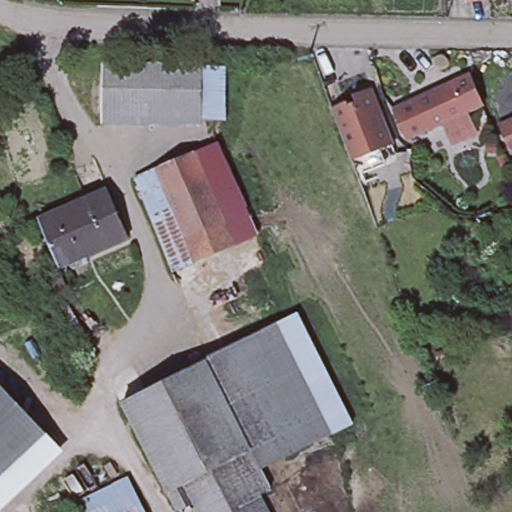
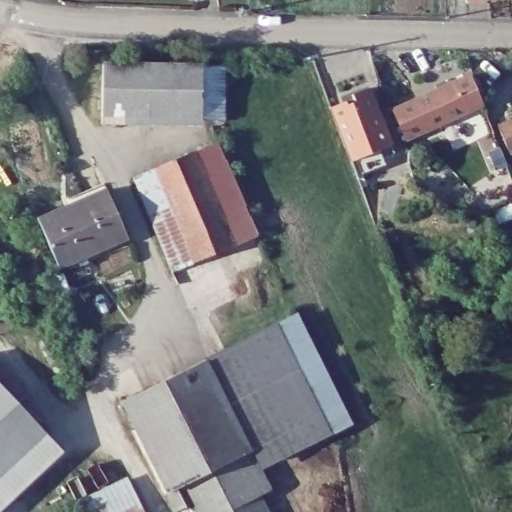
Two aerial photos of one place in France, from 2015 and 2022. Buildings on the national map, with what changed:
unchanged [(462,0),(502,0),(464,7),(462,0)]
unchanged [(117,64),(142,124),(102,124),(103,63),(117,64)]
unchanged [(225,66),(225,119),(205,119),(205,125),(142,124),(117,64),(225,66)]
unchanged [(468,74),(479,104),(463,110),(440,121),(404,138),(391,110),(416,99),(468,74)]
unchanged [(345,103),(347,106),(356,103),(353,94),(367,89),(393,145),(353,163),(331,108),(345,103)]
unchanged [(502,151),(490,125),(512,116),(512,147),(502,151)]
unchanged [(218,139),(262,237),(198,260),(195,262),(174,270),(135,177),(156,168),(160,166),(218,139)]
unchanged [(103,189),(125,237),(56,267),(34,218),(103,189)]
unchanged [(256,469),(202,360),(224,349),(216,332),(222,329),(285,298),(347,423),(275,459),(256,469)]
unchanged [(267,489),(257,494),(265,512),(194,512),(189,502),(173,510),(118,402),(202,360),(256,469),(267,489)]
unchanged [(62,455),(1,512),(0,512),(0,386),(62,455)]
unchanged [(70,504),(91,492),(87,479),(120,467),(139,512),(74,512),(70,504)]

